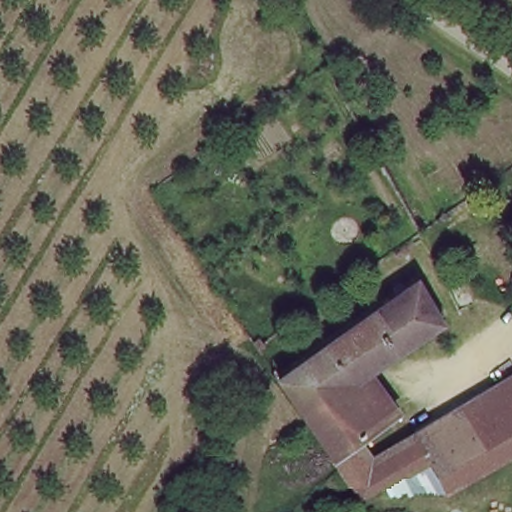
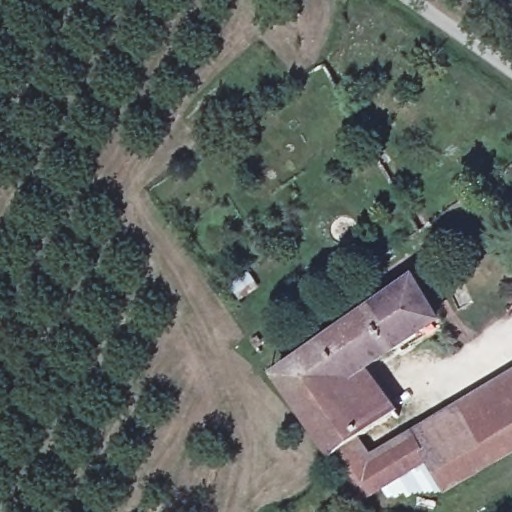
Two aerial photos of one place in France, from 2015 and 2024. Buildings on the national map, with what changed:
unchanged [(271,380),(410,283),(438,325),(366,375),(394,420),(358,444),(326,465),(271,380)]
unchanged [(442,498),(422,470),(405,438),(512,373),(512,458),(442,498)]
unchanged [(368,460),(405,438),(422,470),(357,508),(329,469),(326,465),(358,444),(368,460)]

